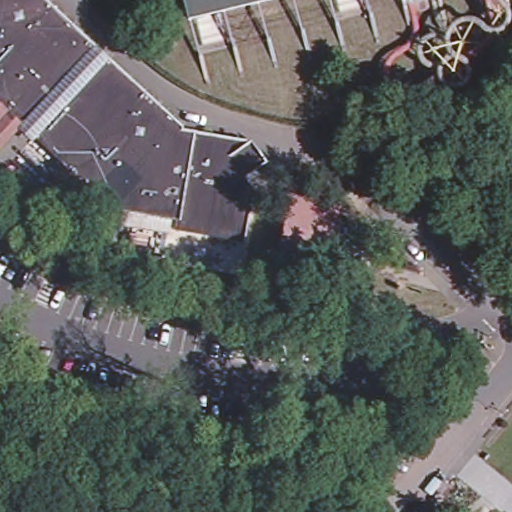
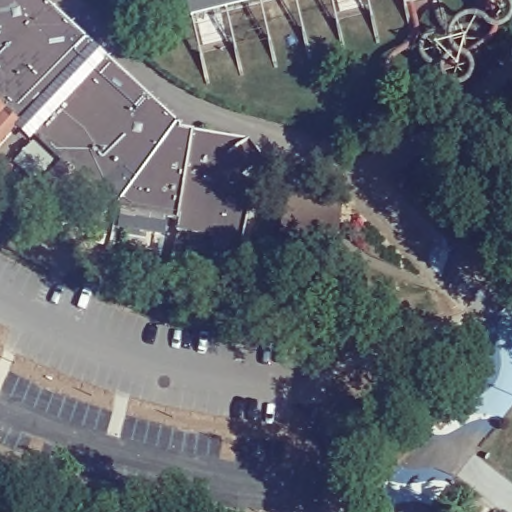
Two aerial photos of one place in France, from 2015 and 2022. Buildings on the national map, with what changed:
unchanged [(6,0),(16,42),(60,83),(22,124),(0,104),(0,0),(6,0)]
unchanged [(23,0),(47,0),(96,46),(71,72),(31,35),(23,0)]
unchanged [(185,0),(285,0),(191,23),(185,0)]
unchanged [(83,84),(108,57),(181,126),(178,129),(122,120),(83,84)]
unchanged [(73,95),(116,136),(230,152),(253,188),(242,241),(178,228),(180,218),(112,208),(63,162),(35,136),(73,95)]
unchanged [(95,226),(80,212),(75,218),(41,187),(63,162),(112,208),(95,226)]
unchanged [(328,264),(283,257),(287,232),(275,230),(281,200),(293,202),(337,210),(328,264)]

